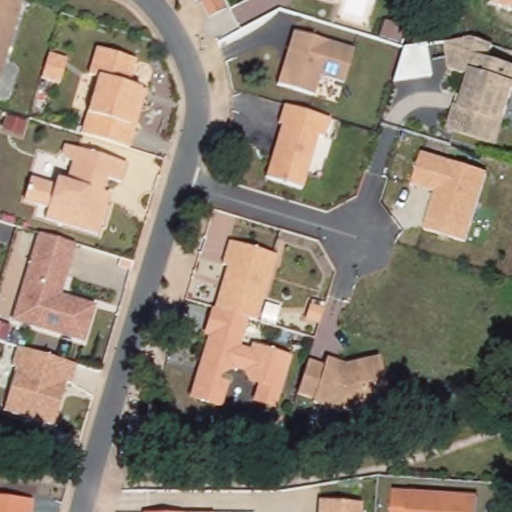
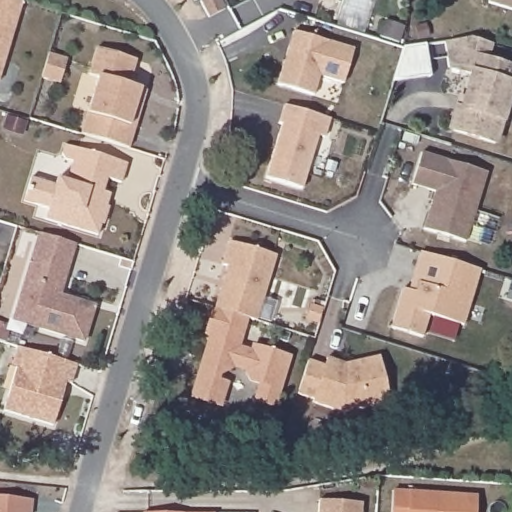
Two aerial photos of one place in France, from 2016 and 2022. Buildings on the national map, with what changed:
unchanged [(20,0),(23,1),(0,78),(0,0),(20,0)]
unchanged [(221,0),(225,8),(210,17),(200,1),(202,0),(221,0)]
unchanged [(314,0),(335,0),(333,6),(314,0)]
unchanged [(512,0),(512,8),(488,2),(489,0),(512,0)]
demolished [(408,18),(407,28),(400,26),(402,16),(408,18)]
unchanged [(291,30),(355,49),(344,83),(320,75),(314,94),(276,82),(291,30)]
unchanged [(455,131),(451,124),(455,111),(461,108),(472,74),(448,67),(445,41),(471,37),(492,44),(488,58),(512,66),(512,90),(511,89),(495,143),(455,131)]
unchanged [(135,122),(129,143),(81,129),(99,72),(89,69),(97,43),(136,55),(129,79),(141,84),(146,85),(135,122)]
unchanged [(430,76),(393,80),(403,47),(426,44),(430,76)]
unchanged [(66,59),(59,83),(41,77),(45,68),(49,53),(66,59)]
unchanged [(302,189),(266,178),(282,124),(280,124),(285,105),(330,119),(325,138),(318,136),(302,189)]
unchanged [(101,199),(108,201),(106,206),(109,207),(104,224),(101,224),(97,235),(45,219),(49,208),(25,200),(31,178),(55,185),(57,179),(67,182),(73,161),(66,159),(62,153),(65,144),(127,163),(121,183),(107,178),(101,199)]
unchanged [(429,229),(440,191),(417,184),(427,152),(492,172),(470,242),(429,229)]
unchanged [(23,298),(45,228),(65,234),(80,239),(64,290),(100,301),(89,337),(35,320),(18,315),(23,298)]
unchanged [(256,321),(247,318),(245,318),(215,308),(228,266),(222,264),(230,241),(276,255),(256,321)]
new [(390,328),(402,288),(409,289),(420,250),(481,269),(465,326),(430,315),(424,338),(390,328)]
unchanged [(290,357),(275,406),(256,400),(261,383),(251,380),(246,372),(247,370),(232,365),(232,367),(220,374),(217,380),(227,383),(220,406),(192,397),(211,335),(206,333),(214,308),(215,308),(245,318),(247,318),(238,348),(252,352),(255,346),(290,357)]
unchanged [(70,383),(66,382),(52,425),(3,410),(16,367),(11,365),(17,346),(64,360),(76,364),(70,383)]
unchanged [(324,367),(326,361),(346,367),(380,359),(391,404),(351,412),(350,420),(315,411),(316,405),(296,398),(307,362),(324,367)]
unchanged [(477,497),(476,512),(392,512),(393,491),(477,497)]
unchanged [(33,500),(32,512),(0,512),(0,496),(33,500)]
unchanged [(320,500),(362,503),(361,512),(319,512),(320,500)]
unchanged [(215,508),(214,512),(144,512),(144,508),(171,508),(215,508)]

